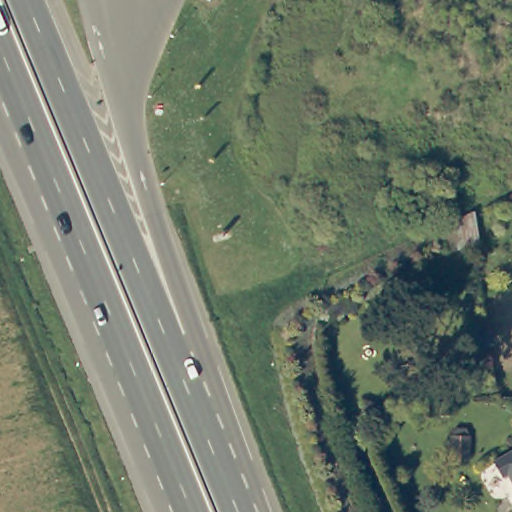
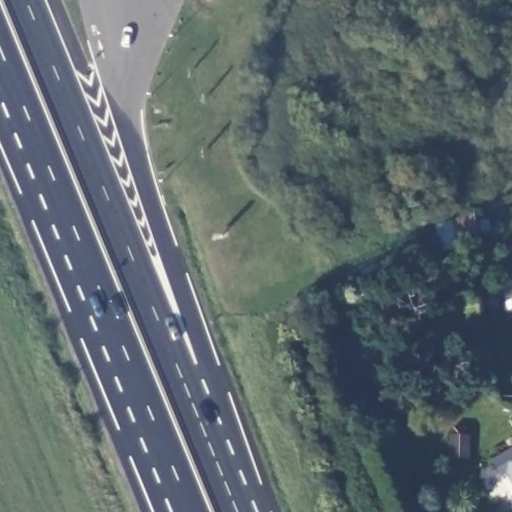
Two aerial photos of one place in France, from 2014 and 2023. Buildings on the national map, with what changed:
unchanged [(473,215),(477,214),(480,239),(464,247),(461,241),(434,251),(427,235),(473,215)]
unchanged [(505,478),(495,462),(512,452),(512,480),(510,476),(505,478)]

